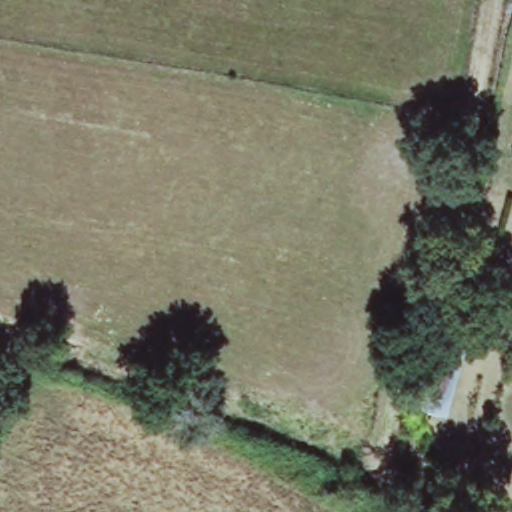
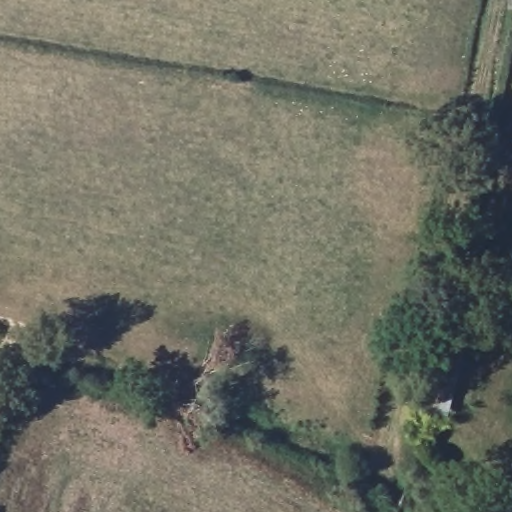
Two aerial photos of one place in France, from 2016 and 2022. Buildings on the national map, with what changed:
[]

